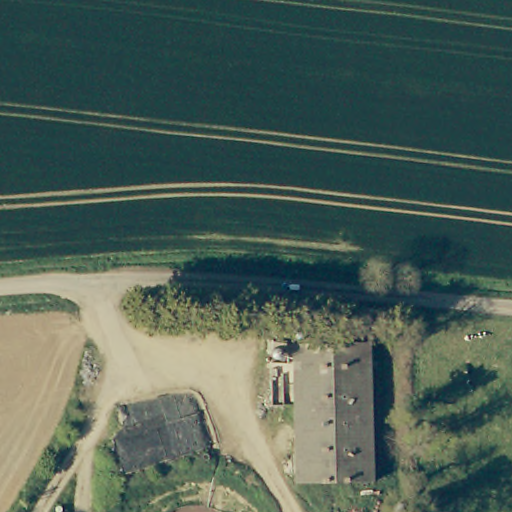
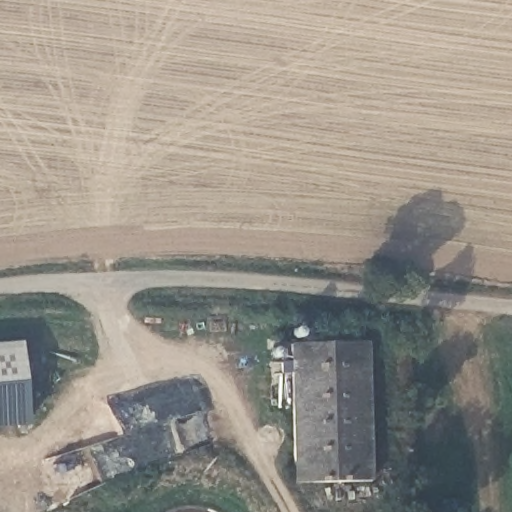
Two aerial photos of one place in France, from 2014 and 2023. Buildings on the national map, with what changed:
new [(24,341),(30,425),(0,427),(0,343),(24,341)]
unchanged [(289,346),(367,344),(371,482),(293,484),(289,346)]

